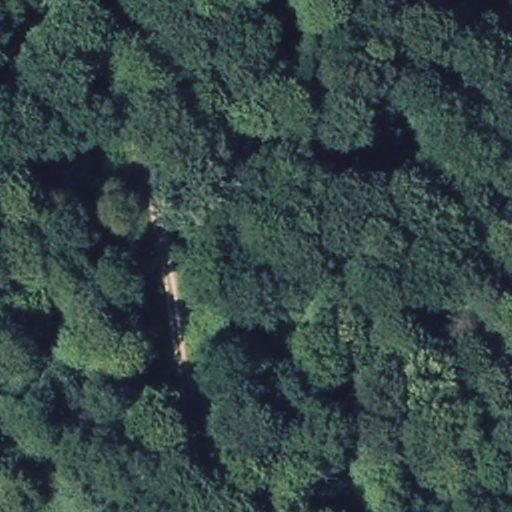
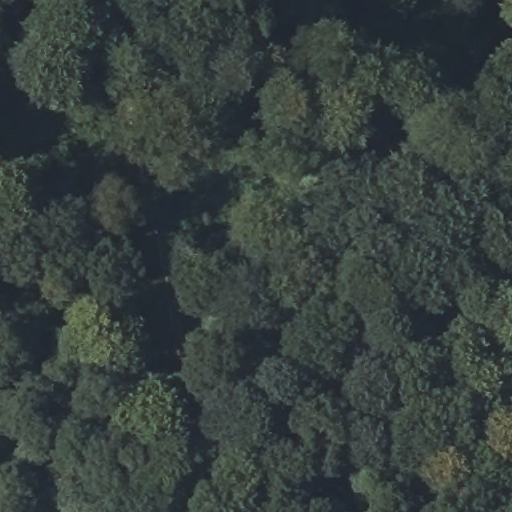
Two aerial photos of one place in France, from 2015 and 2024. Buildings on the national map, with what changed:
unchanged [(232,39),(255,14),(277,36),(254,60),(232,39)]

